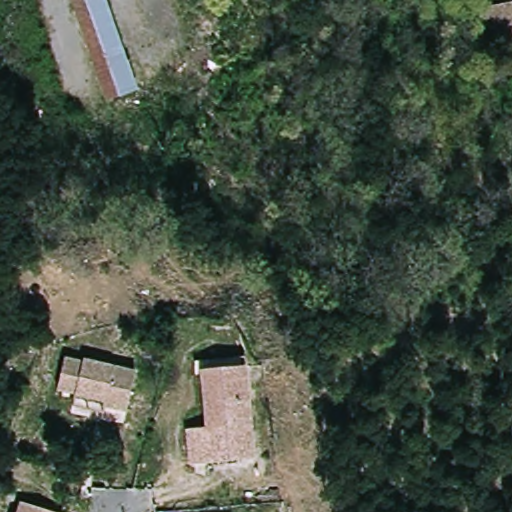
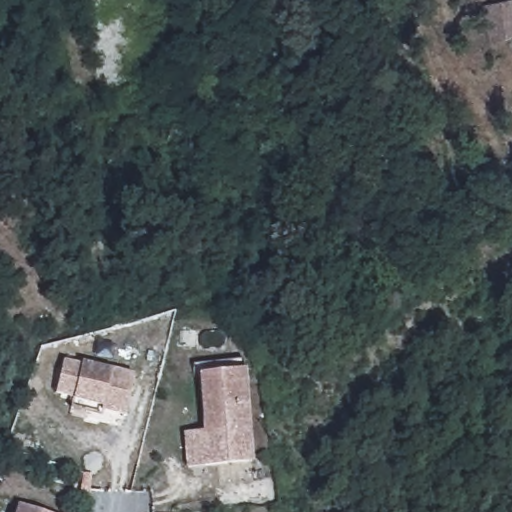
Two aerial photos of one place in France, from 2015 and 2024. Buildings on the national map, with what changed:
demolished [(141,88),(112,98),(76,0),(109,0),(141,88)]
unchanged [(492,42),(485,2),(495,0),(512,0),(512,38),(492,42)]
unchanged [(67,359),(86,364),(87,361),(139,374),(131,408),(125,413),(108,408),(108,405),(77,397),(78,394),(60,390),(67,359)]
unchanged [(213,471),(191,472),(189,437),(209,436),(204,378),(203,368),(247,365),(248,375),(254,455),(255,467),(213,471)]
unchanged [(43,512),(22,512),(24,507),(43,512)]

